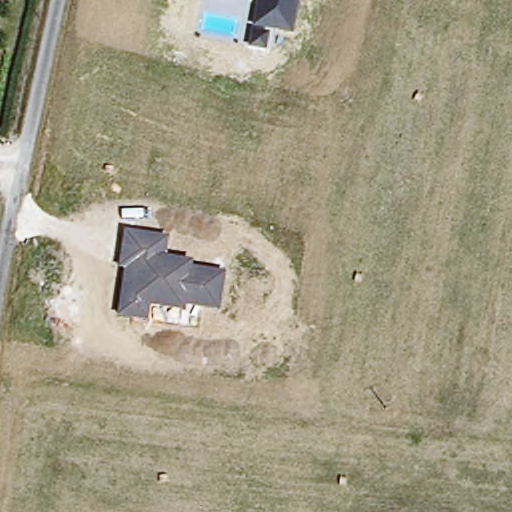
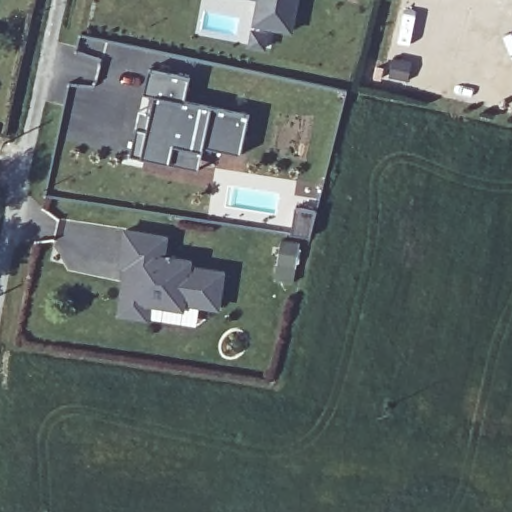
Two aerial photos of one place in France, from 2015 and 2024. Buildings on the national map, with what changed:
unchanged [(292,35),(250,27),(255,0),(299,0),(292,35)]
new [(190,78),(186,100),(250,113),(241,153),(204,145),(199,170),(129,155),(147,70),(190,78)]
unchanged [(168,235),(165,255),(192,259),(191,266),(226,271),(221,310),(184,305),(183,310),(150,305),(148,319),(117,315),(123,269),(117,268),(122,229),(168,235)]

